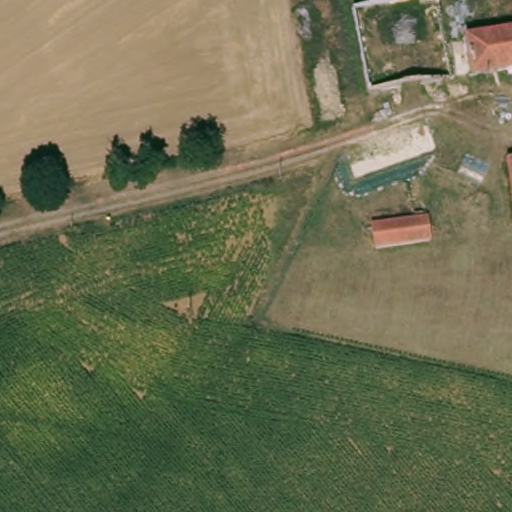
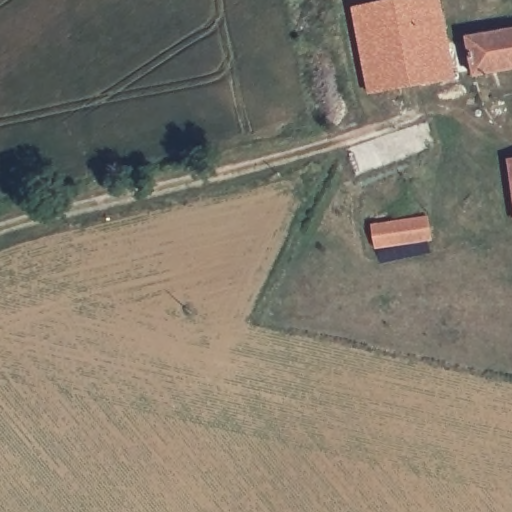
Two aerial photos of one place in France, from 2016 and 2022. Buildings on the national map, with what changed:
new [(350,8),(393,0),(440,0),(455,82),(366,97),(350,8)]
demolished [(353,15),(409,7),(440,2),(450,49),(512,38),(512,71),(371,94),(353,15)]
new [(464,39),(512,30),(512,72),(471,79),(464,39)]
unchanged [(509,167),(512,166),(512,189),(509,167)]
unchanged [(426,216),(429,242),(377,247),(374,222),(426,216)]

